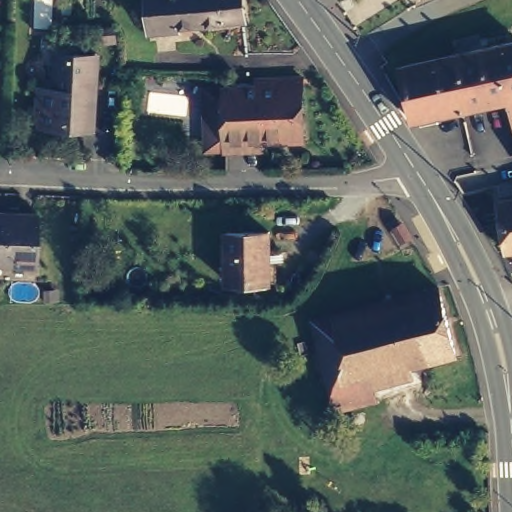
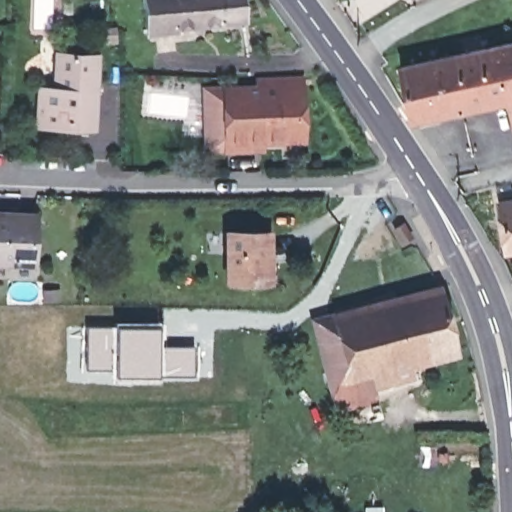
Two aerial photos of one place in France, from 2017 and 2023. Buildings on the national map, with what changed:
unchanged [(134,0),(233,0),(235,21),(166,28),(167,31),(138,34),(134,0)]
unchanged [(108,44),(107,40),(106,29),(115,29),(115,39),(116,43),(108,44)]
unchanged [(510,95),(413,116),(401,62),(512,37),(512,104),(510,95)]
unchanged [(79,134),(29,131),(30,112),(31,94),(46,95),(48,59),(89,62),(87,90),(85,134),(79,134)]
unchanged [(226,149),(213,149),(210,88),(258,87),(258,79),(303,77),(305,140),(262,142),(263,149),(226,150),(226,149)]
unchanged [(499,202),(512,199),(512,250),(507,251),(499,202)]
unchanged [(27,214),(24,266),(0,265),(0,213),(27,214)]
unchanged [(403,242),(395,229),(403,224),(411,237),(403,242)]
unchanged [(265,282),(223,282),(222,232),(265,232),(265,262),(272,262),(272,282),(265,282)]
unchanged [(330,386),(313,320),(439,287),(456,353),(392,370),(388,355),(368,360),(372,375),(368,376),(374,398),(336,408),(330,386)]
new [(85,323),(157,327),(156,346),(192,347),(190,378),(112,375),(112,368),(83,367),(85,323)]

